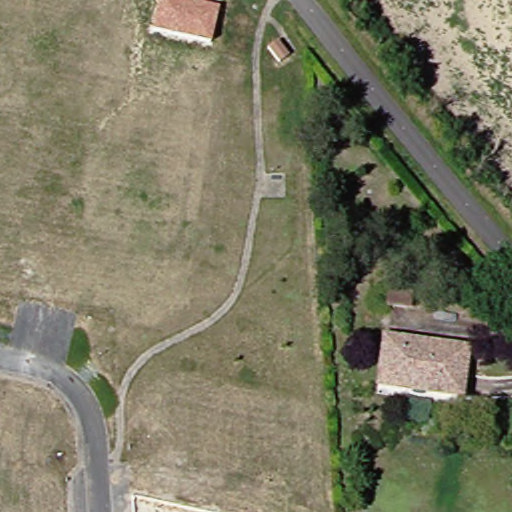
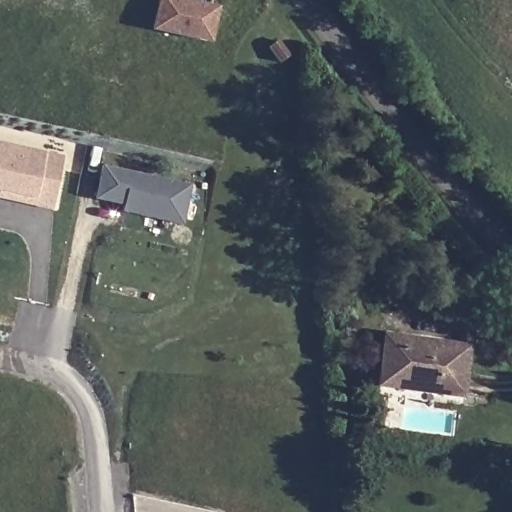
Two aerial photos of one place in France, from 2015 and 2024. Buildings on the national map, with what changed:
unchanged [(220,9),(212,47),(152,35),(158,0),(175,0),(220,9)]
new [(0,142),(48,153),(67,157),(64,170),(55,207),(36,202),(0,195),(2,187),(0,187),(0,142)]
new [(184,228),(121,215),(122,208),(94,202),(102,167),(192,187),(184,228)]
unchanged [(380,388),(386,338),(471,347),(465,398),(437,395),(403,390),(380,388)]

